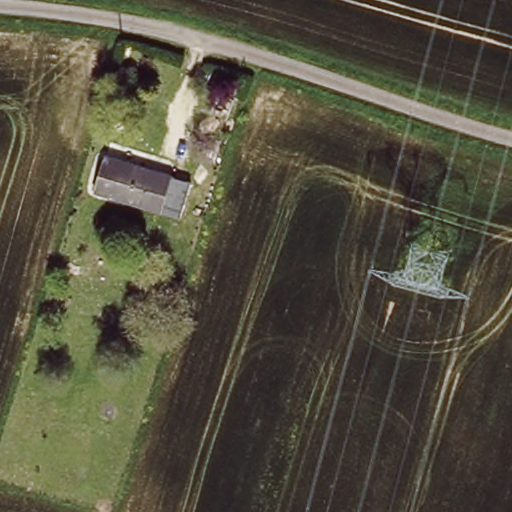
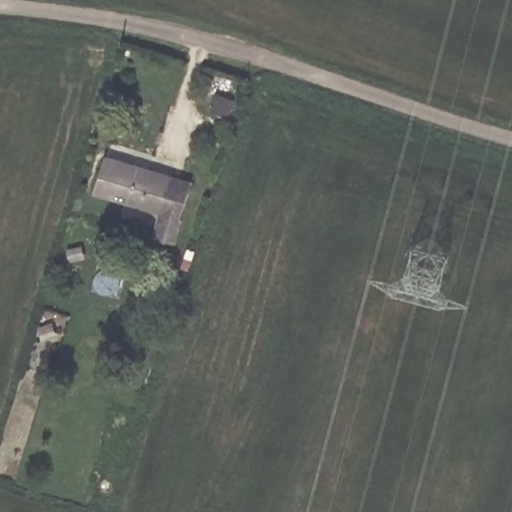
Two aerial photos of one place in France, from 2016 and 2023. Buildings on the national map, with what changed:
unchanged [(190,178),(182,213),(98,186),(108,150),(190,178)]

